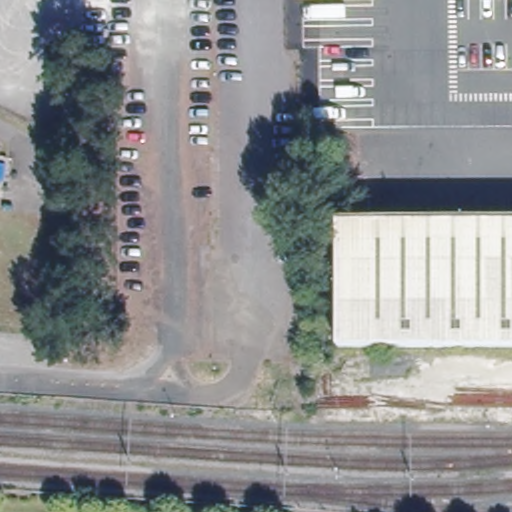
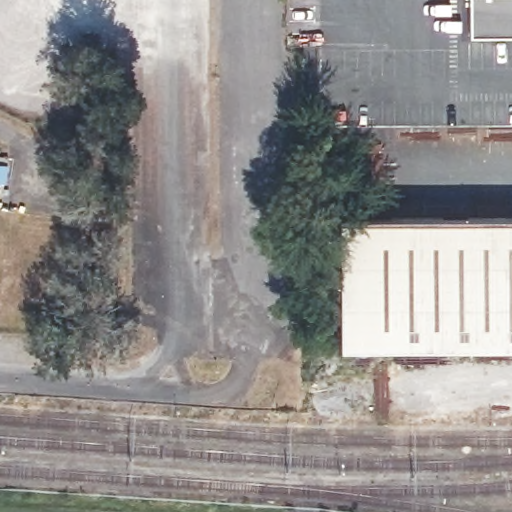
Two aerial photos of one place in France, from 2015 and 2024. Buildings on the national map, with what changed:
new [(476,0),(512,0),(512,34),(476,33),(476,0)]
unchanged [(512,222),(512,351),(335,352),(334,223),(512,222)]

